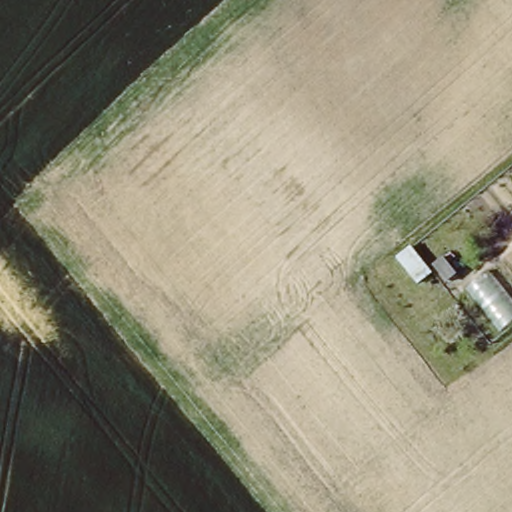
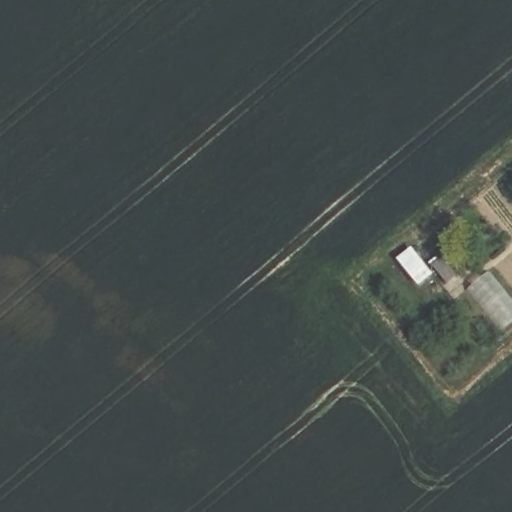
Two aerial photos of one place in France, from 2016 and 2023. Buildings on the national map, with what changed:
unchanged [(437,276),(430,269),(439,262),(454,281),(446,288),(437,276)]

